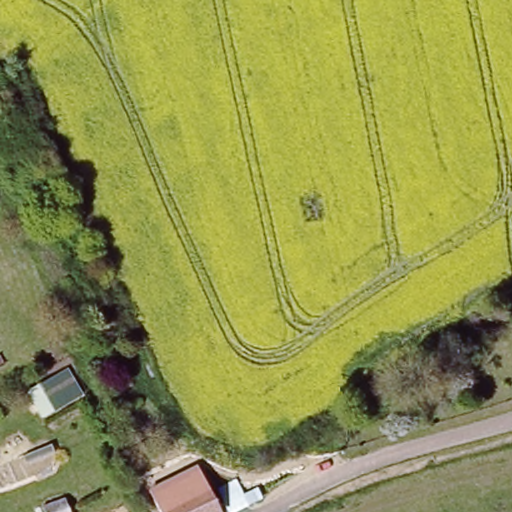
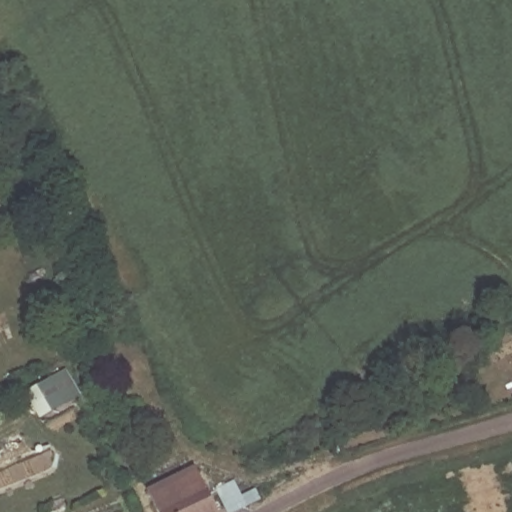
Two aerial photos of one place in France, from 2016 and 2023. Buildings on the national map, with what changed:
unchanged [(67,368),(81,394),(52,410),(39,384),(67,368)]
unchanged [(179,491),(169,473),(192,463),(201,481),(205,489),(216,512),(147,512),(144,507),(179,491)]
unchanged [(227,512),(215,488),(235,478),(247,502),(227,512)]
unchanged [(39,512),(34,499),(55,492),(65,512),(39,512)]

